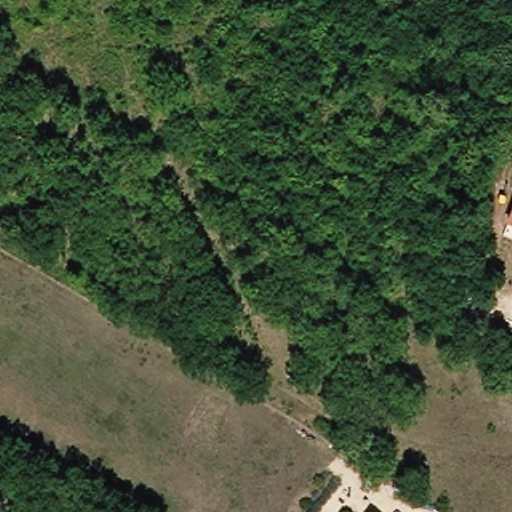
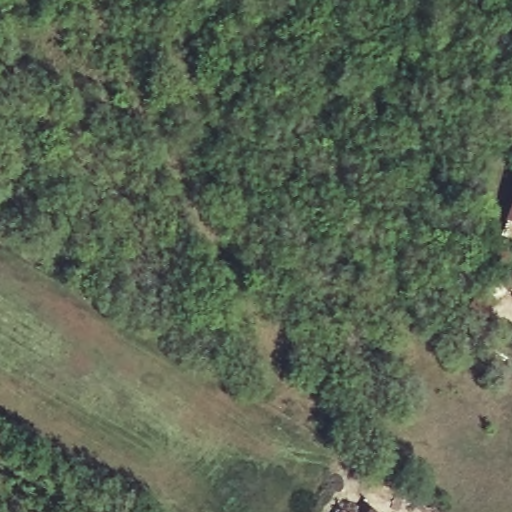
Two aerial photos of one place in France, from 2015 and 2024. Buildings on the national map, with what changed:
unchanged [(512,209),(512,225),(507,222),(512,209)]

